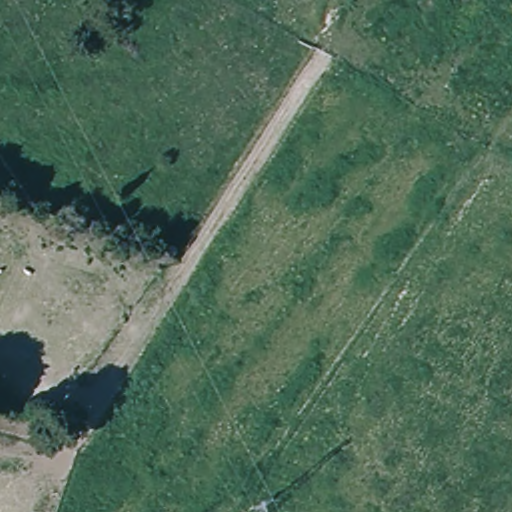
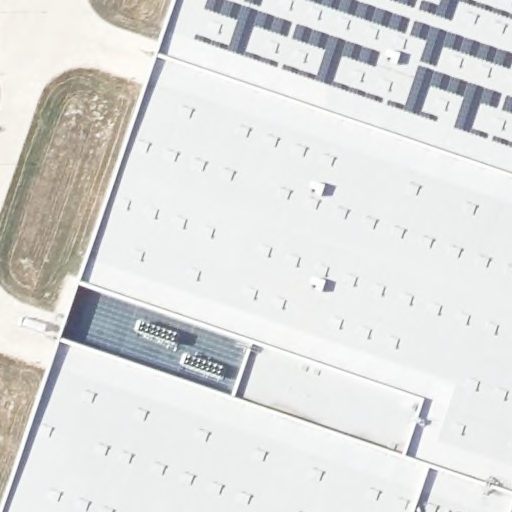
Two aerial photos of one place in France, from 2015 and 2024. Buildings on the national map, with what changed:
new [(189,0),(512,0),(512,512),(14,512),(189,0)]

